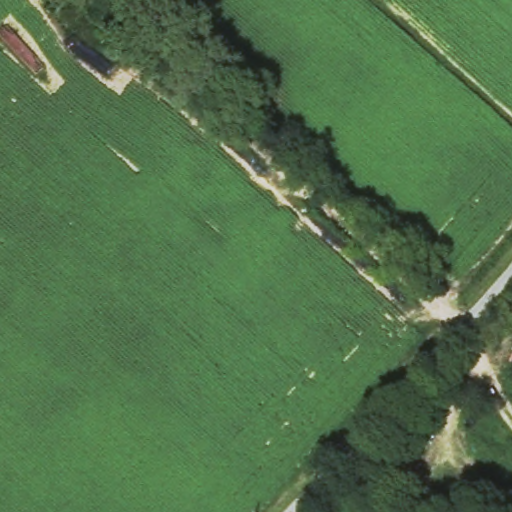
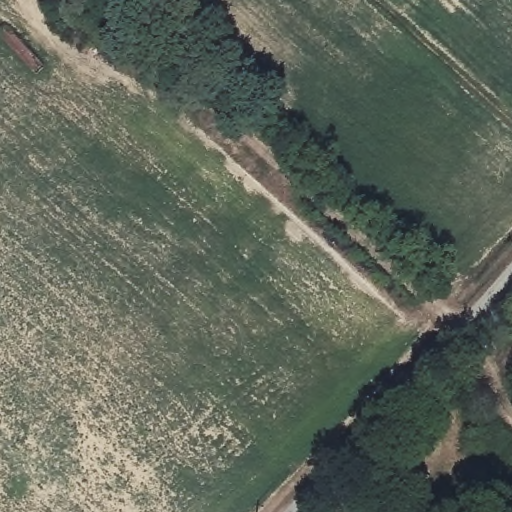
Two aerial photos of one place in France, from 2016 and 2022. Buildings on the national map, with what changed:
unchanged [(512,388),(508,385),(512,380),(512,388)]

